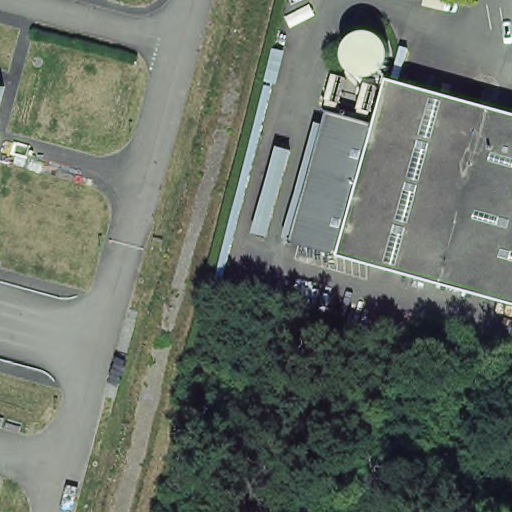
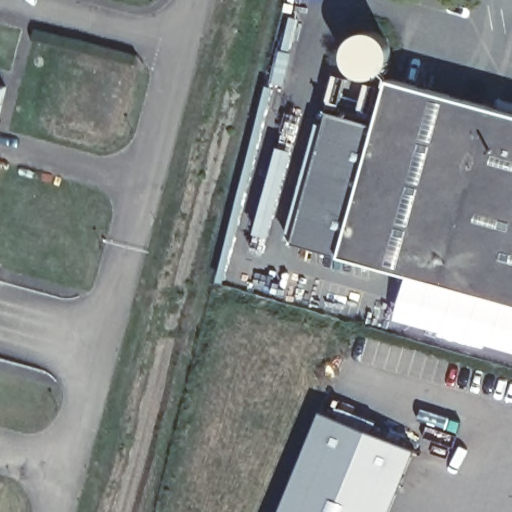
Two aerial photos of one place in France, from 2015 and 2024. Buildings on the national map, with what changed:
unchanged [(294,240),(330,110),(379,123),(391,77),(512,112),(512,304),(294,240)]
unchanged [(7,88),(0,114),(0,86),(7,88)]
new [(390,512),(278,512),(320,409),(416,449),(390,512)]

